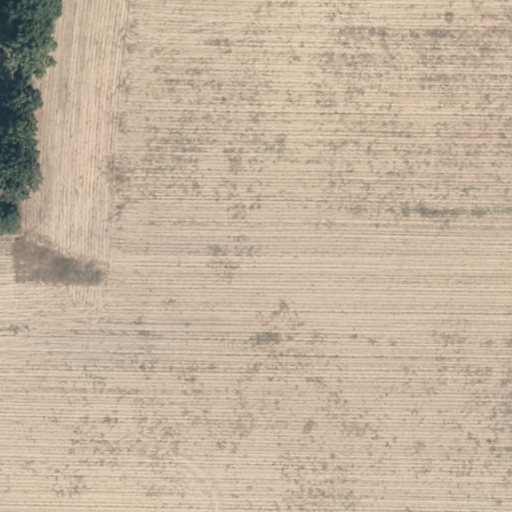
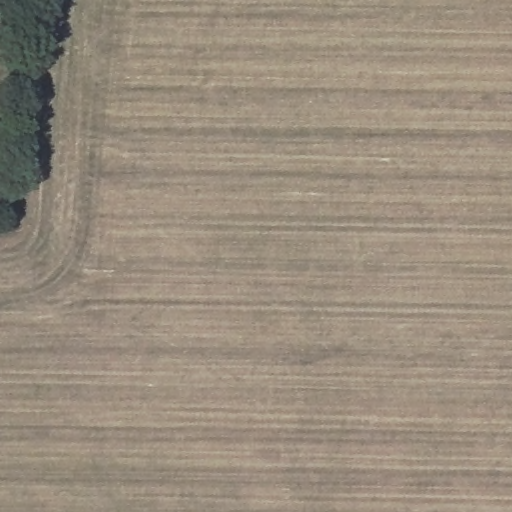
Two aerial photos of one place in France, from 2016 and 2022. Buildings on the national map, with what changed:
[]

